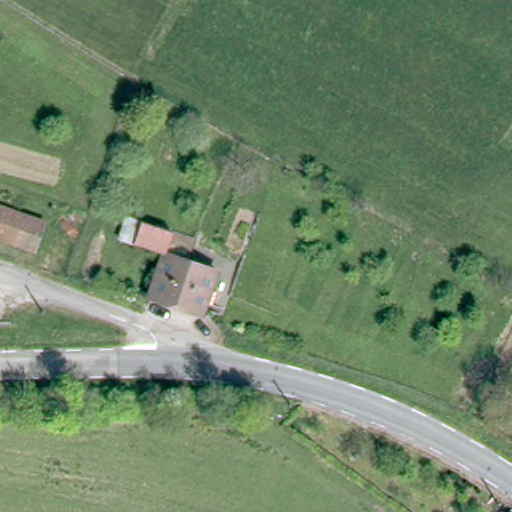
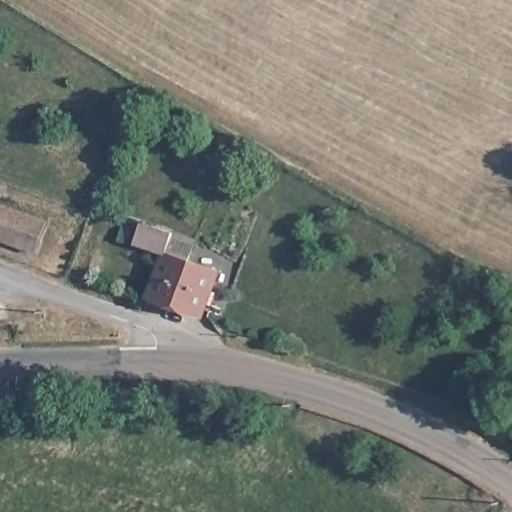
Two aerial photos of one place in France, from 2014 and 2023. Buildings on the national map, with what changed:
unchanged [(52,226),(41,256),(0,241),(0,207),(52,226)]
unchanged [(205,303),(201,315),(148,296),(162,254),(118,239),(127,216),(190,237),(182,260),(215,271),(208,292),(214,294),(210,305),(205,303)]
unchanged [(501,432),(480,420),(489,405),(510,417),(501,432)]

